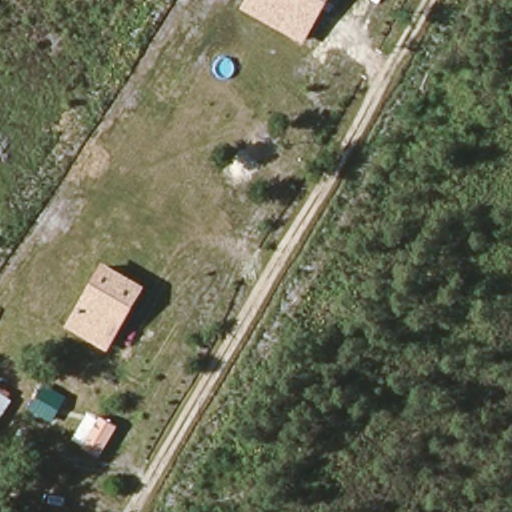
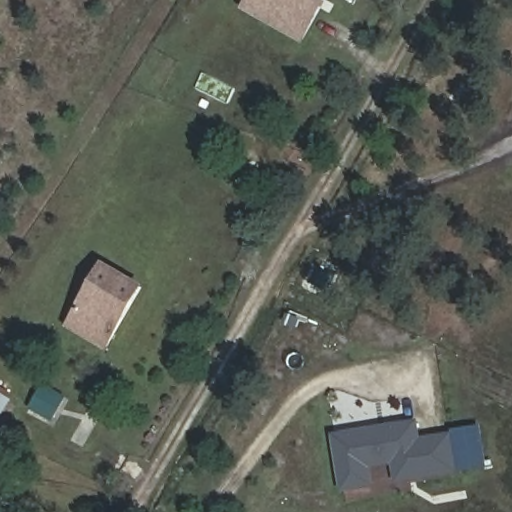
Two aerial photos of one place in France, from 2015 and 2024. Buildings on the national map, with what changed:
unchanged [(305,42),(241,10),(246,0),(329,0),(305,42)]
unchanged [(105,261),(146,286),(109,351),(66,327),(105,261)]
unchanged [(69,396),(54,420),(31,407),(44,382),(69,396)]
unchanged [(0,390),(12,398),(0,420),(0,390)]
demolished [(120,425),(101,459),(82,447),(101,415),(120,425)]
new [(458,472),(395,481),(393,465),(371,468),(373,486),(341,490),(333,433),(420,420),(421,437),(452,432),(458,472)]

